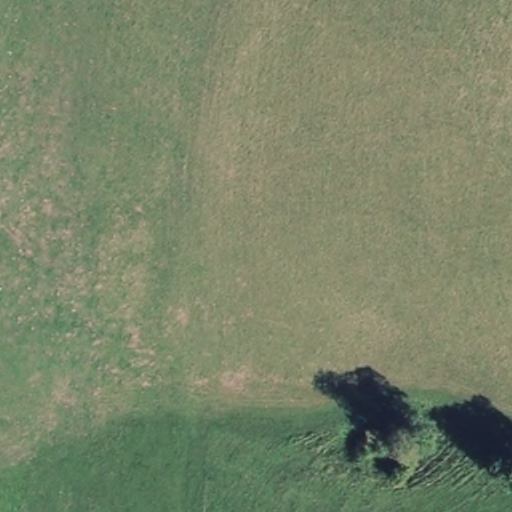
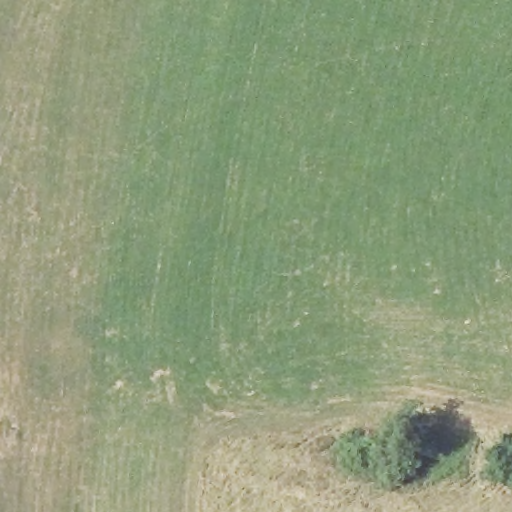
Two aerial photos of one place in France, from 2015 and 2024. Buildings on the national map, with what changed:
[]

